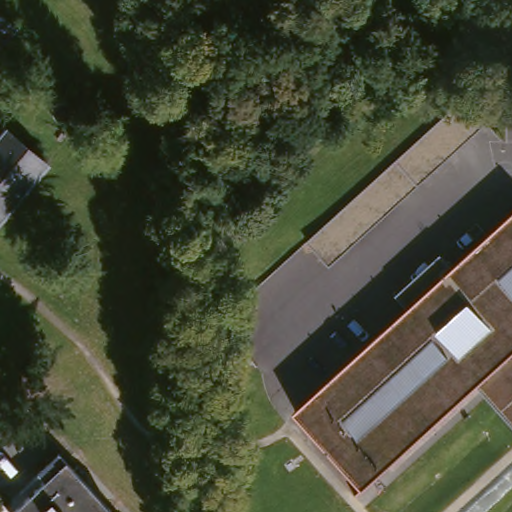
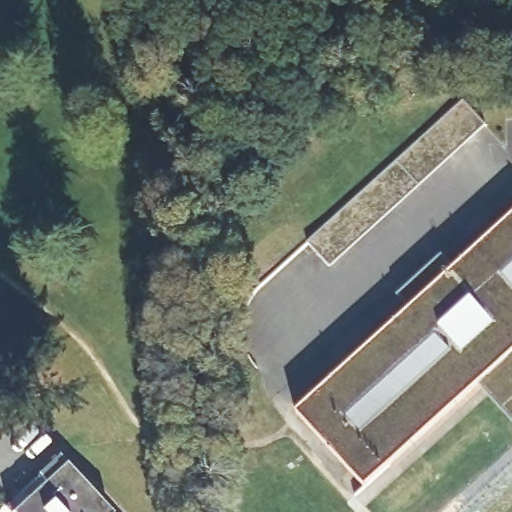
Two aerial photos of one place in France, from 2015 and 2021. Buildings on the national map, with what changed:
demolished [(21,30),(0,56),(0,12),(21,30)]
unchanged [(455,100),(485,128),(325,276),(301,245),(455,100)]
demolished [(12,131),(52,165),(0,226),(0,145),(12,131)]
unchanged [(396,294),(443,255),(456,267),(512,215),(512,425),(476,388),(364,486),(292,407),(409,308),(396,294)]
unchanged [(0,498),(0,496),(54,446),(115,512),(13,512),(0,498)]

